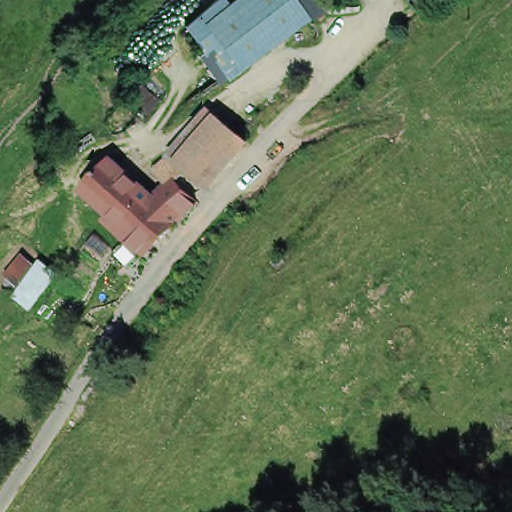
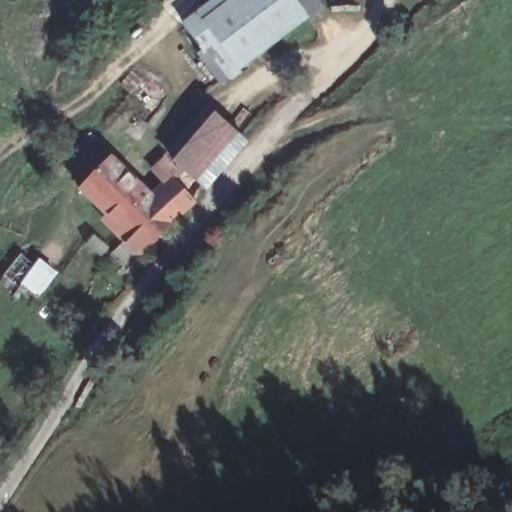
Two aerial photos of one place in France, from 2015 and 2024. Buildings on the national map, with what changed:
unchanged [(207,0),(301,0),(311,14),(238,59),(248,72),(221,86),(183,19),(207,0)]
unchanged [(118,150),(154,186),(161,181),(148,168),(165,146),(176,154),(213,110),(250,140),(204,193),(139,258),(79,188),(118,150)]
unchanged [(69,278),(37,319),(10,296),(43,255),(69,278)]

